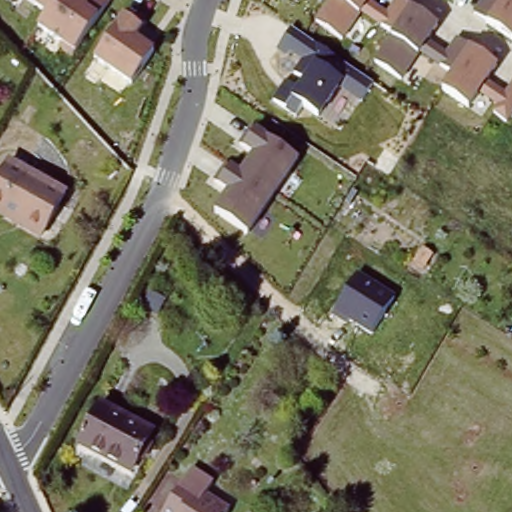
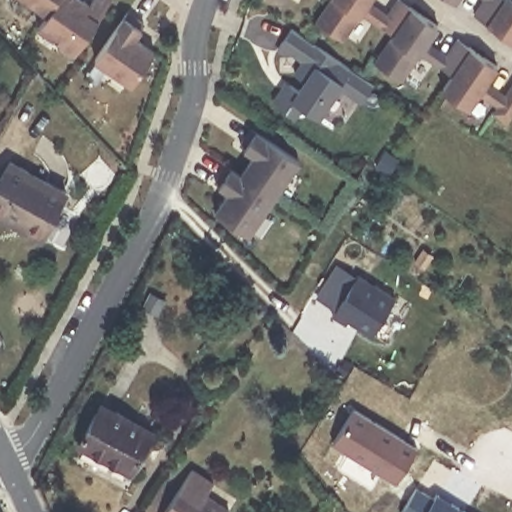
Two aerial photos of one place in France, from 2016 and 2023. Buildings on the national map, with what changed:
unchanged [(91,0),(110,0),(97,17),(74,51),(71,57),(57,49),(61,43),(37,27),(45,14),(24,0),(86,0),(89,2),(91,0)]
unchanged [(387,11),(395,0),(399,0),(407,6),(439,26),(430,41),(445,50),(452,37),(470,47),(497,65),(488,81),(504,92),(512,80),(512,114),(506,123),(492,114),(496,107),(479,96),(471,108),(441,89),(450,74),(420,55),(403,79),(374,59),(389,37),(359,15),(342,40),(314,20),(328,0),(371,0),(387,11)]
unchanged [(486,20),(472,12),(482,0),(512,0),(512,38),(486,20)]
unchanged [(141,27),(135,38),(154,50),(130,85),(92,60),(122,15),(141,27)]
unchanged [(287,80),(297,86),(304,79),(293,74),(301,61),(289,52),(286,59),(276,52),(292,27),(375,83),(362,103),(340,87),(320,116),(302,106),(296,117),(272,100),(287,80)]
unchanged [(215,211),(227,192),(217,185),(230,165),(241,171),(253,155),(243,149),(256,127),(300,157),(250,234),(215,211)]
unchanged [(0,216),(0,184),(12,162),(67,194),(49,230),(44,239),(21,226),(0,216)]
unchanged [(372,335),(350,321),(347,326),(329,315),(357,272),(396,294),(372,335)]
unchanged [(157,434),(130,477),(72,450),(102,403),(157,434)]
new [(355,410),(417,450),(396,483),(334,443),(355,410)]
unchanged [(205,495),(230,510),(229,512),(165,512),(191,470),(212,483),(205,495)]
new [(417,490),(434,500),(437,495),(463,512),(403,512),(417,490)]

